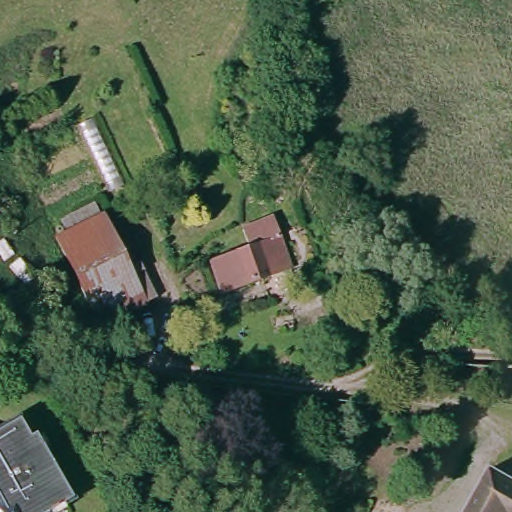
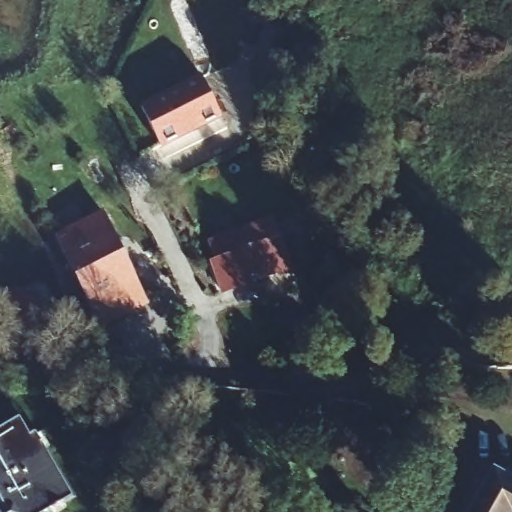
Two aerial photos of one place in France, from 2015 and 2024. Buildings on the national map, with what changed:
new [(202,79),(216,116),(157,145),(140,108),(202,79)]
unchanged [(59,225),(58,223),(110,208),(137,293),(85,309),(59,225)]
unchanged [(205,262),(246,248),(240,229),(257,224),(262,242),(273,239),(275,245),(283,243),(287,257),(280,260),(283,269),(267,274),(215,292),(205,262)]
unchanged [(307,276),(325,311),(310,319),(303,306),(301,308),(290,284),(307,276)]
unchanged [(29,437),(35,434),(72,499),(50,512),(0,512),(0,433),(20,422),(29,437)]
unchanged [(512,480),(512,512),(465,512),(488,468),(512,480)]

